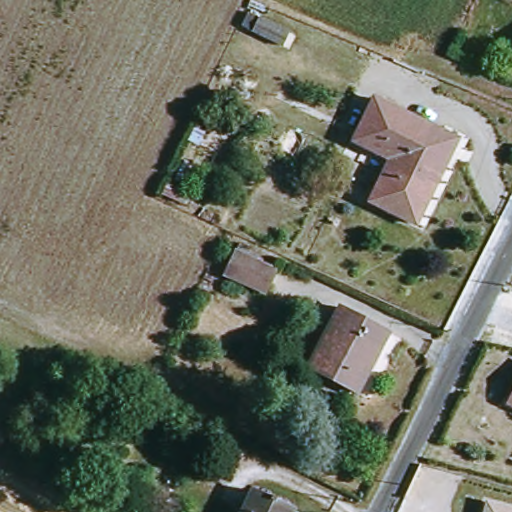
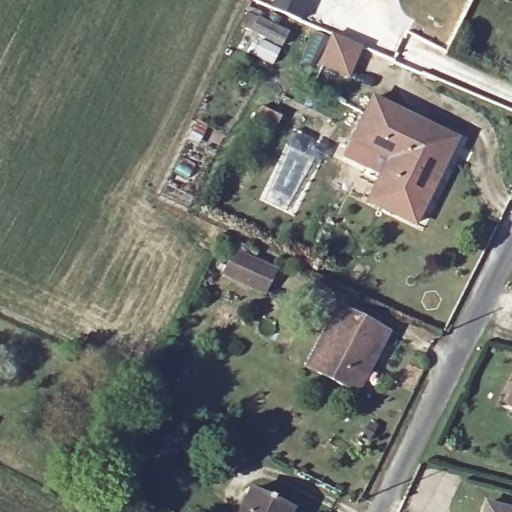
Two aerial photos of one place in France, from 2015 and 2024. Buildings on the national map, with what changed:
unchanged [(242,26),(249,12),(289,32),(282,45),(242,26)]
new [(333,34),(360,46),(348,76),(320,64),(333,34)]
unchanged [(370,201),(390,159),(353,141),(374,98),(446,133),(457,139),(445,164),(416,224),(370,201)]
unchanged [(224,274),(235,252),(277,272),(266,295),(224,274)]
unchanged [(340,307),(389,332),(358,392),(310,367),(340,307)]
unchanged [(512,390),(512,410),(504,405),(512,390)]
unchanged [(241,512),(252,490),(290,508),(289,512),(241,512)]
unchanged [(512,512),(482,512),(485,499),(512,506),(512,512)]

